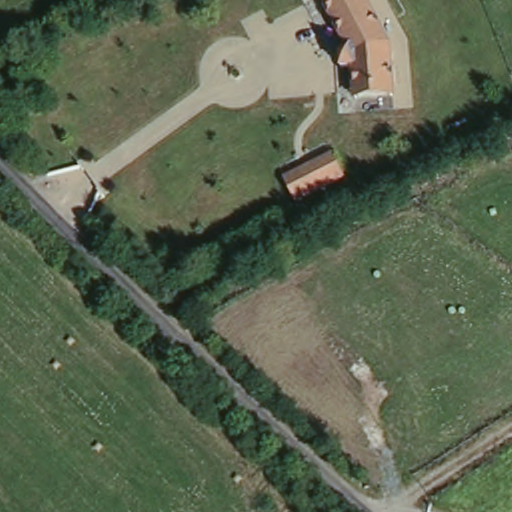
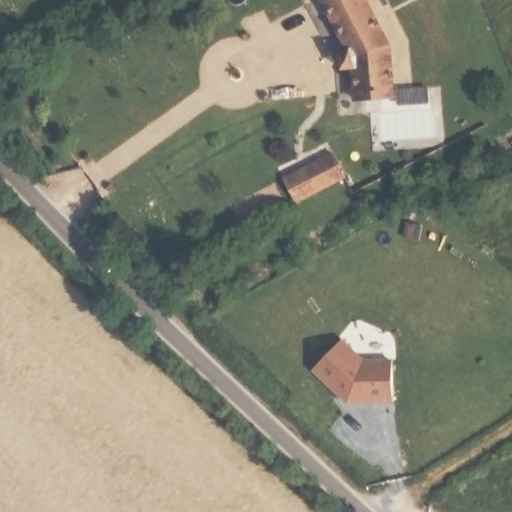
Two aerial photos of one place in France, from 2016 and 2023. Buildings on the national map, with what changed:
unchanged [(392,100),(352,100),(350,61),(320,0),(359,0),(383,41),(392,100)]
unchanged [(283,179),(335,153),(346,177),(295,203),(283,179)]
new [(343,340),(363,360),(392,360),(393,403),(347,403),(312,370),(343,340)]

